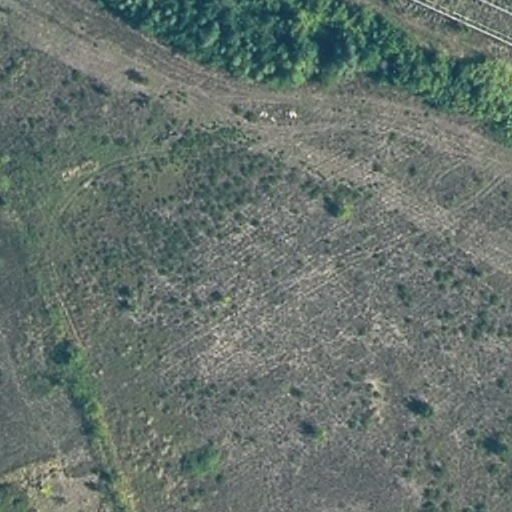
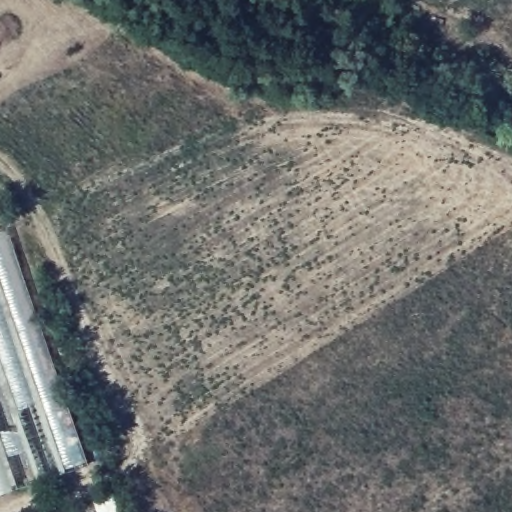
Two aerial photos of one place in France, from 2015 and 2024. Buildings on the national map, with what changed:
demolished [(512,0),(512,43),(417,0),(512,0)]
new [(0,495),(0,228),(10,225),(89,466),(0,495)]
demolished [(377,374),(411,437),(391,447),(359,381),(377,374)]

